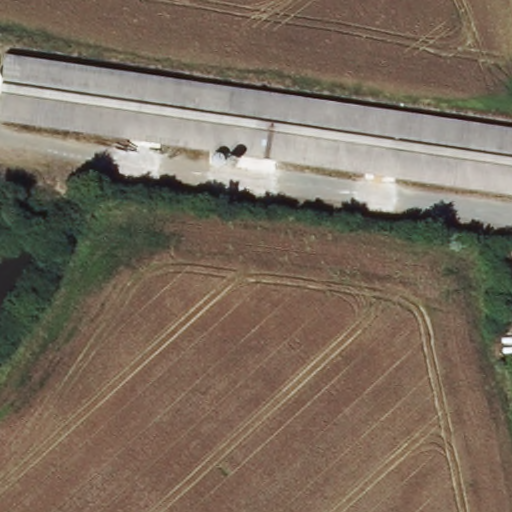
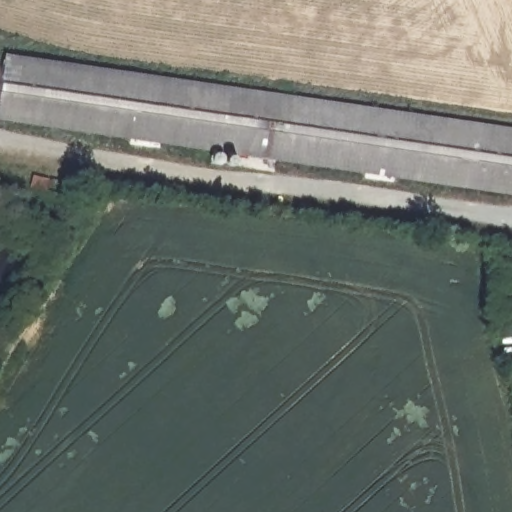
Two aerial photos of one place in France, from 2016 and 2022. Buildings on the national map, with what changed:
unchanged [(512,125),(512,191),(0,117),(0,81),(5,51),(512,125)]

